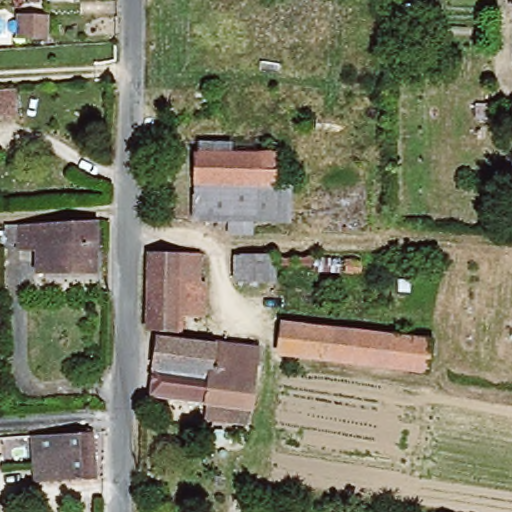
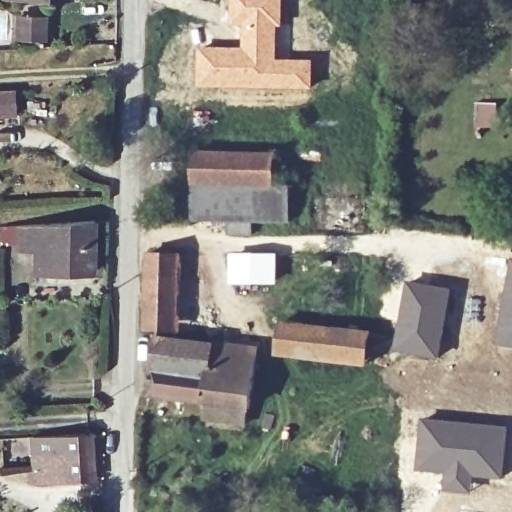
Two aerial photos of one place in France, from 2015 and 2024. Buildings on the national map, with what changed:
new [(197,47),(240,47),(240,27),(229,26),(229,0),(283,0),(282,27),(278,27),(277,58),(313,59),(313,90),(243,90),(197,87),(197,47)]
new [(13,39),(13,30),(13,20),(40,19),(41,34),(41,39),(13,39)]
unchanged [(18,112),(0,113),(0,89),(16,88),(18,112)]
unchanged [(197,152),(275,154),(274,180),(196,178),(197,152)]
unchanged [(274,180),(293,182),(290,221),(257,220),(256,237),(236,237),(236,219),(194,217),(196,178),(274,180)]
unchanged [(92,273),(36,272),(36,251),(19,250),(20,229),(94,225),(92,273)]
unchanged [(271,256),(271,278),(232,278),(231,255),(271,256)]
new [(512,257),(512,348),(494,345),(510,257),(512,257)]
unchanged [(251,407),(151,400),(156,332),(145,331),(148,258),(198,260),(198,305),(180,306),(176,342),(256,349),(251,407)]
unchanged [(281,319),(353,329),(429,341),(424,373),(276,348),(281,319)]
new [(419,417),(509,426),(503,481),(475,477),(471,495),(442,492),(444,475),(415,470),(419,417)]
unchanged [(94,477),(36,481),(32,436),(91,432),(94,477)]

